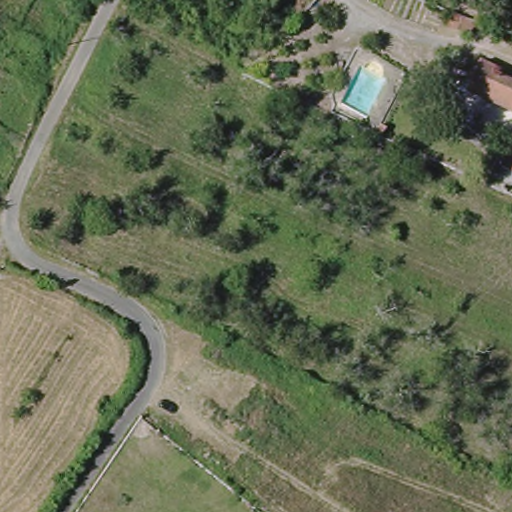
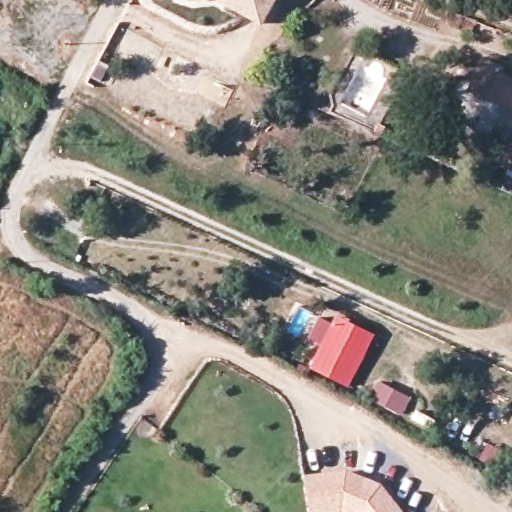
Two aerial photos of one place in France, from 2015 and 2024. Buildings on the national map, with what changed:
new [(263,26),(223,4),(189,2),(189,0),(279,0),(263,26)]
unchanged [(506,99),(469,84),(480,61),(504,71),(502,77),(512,82),(512,110),(503,106),(506,99)]
unchanged [(512,169),(508,167),(512,159),(512,169)]
new [(311,368),(336,316),(376,335),(349,387),(311,368)]
new [(349,470),(383,483),(404,512),(311,512),(306,475),(349,470)]

